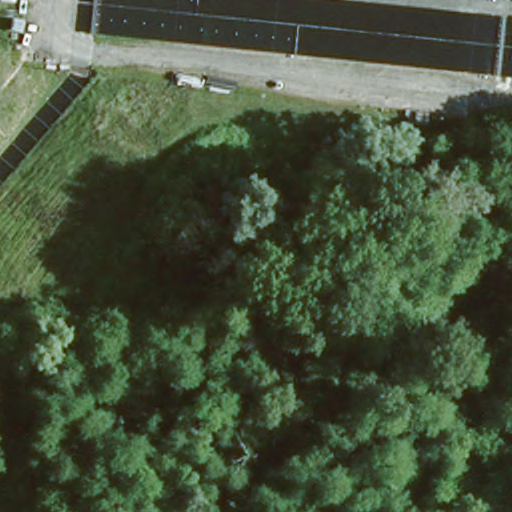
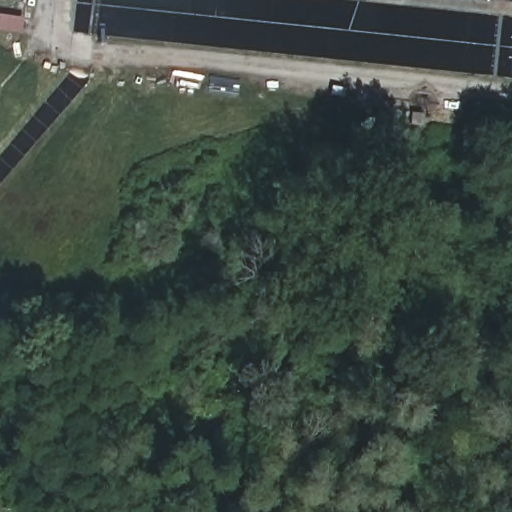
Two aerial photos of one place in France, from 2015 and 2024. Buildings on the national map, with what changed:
unchanged [(0,6),(0,0),(1,0),(0,6)]
unchanged [(110,408),(86,440),(22,398),(43,364),(110,408)]

